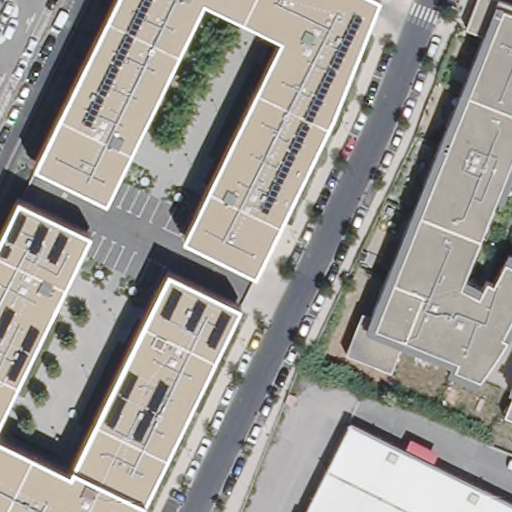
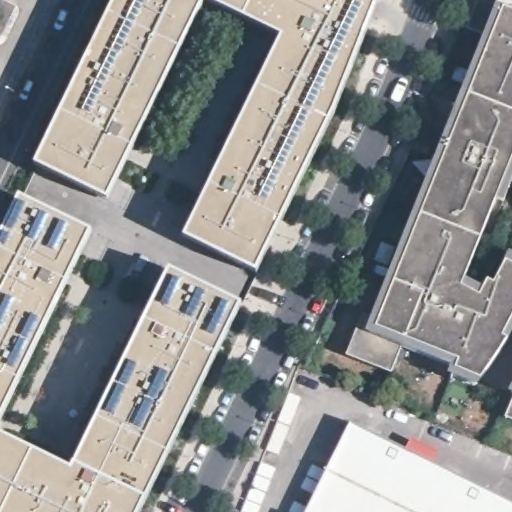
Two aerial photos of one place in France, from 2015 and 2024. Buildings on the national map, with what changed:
unchanged [(114,0),(379,0),(258,269),(182,238),(279,39),(244,18),(205,1),(110,192),(37,160),(114,0)]
unchanged [(373,314),(486,33),(470,25),(480,0),(504,0),(512,3),(512,172),(464,283),(484,295),(489,280),(497,283),(509,253),(512,255),(512,333),(507,342),(480,384),(456,373),(459,362),(405,338),(394,372),(346,355),(362,311),(373,314)]
unchanged [(19,196),(91,232),(0,419),(0,235),(19,196)]
unchanged [(137,512),(0,512),(0,436),(70,470),(73,464),(168,269),(240,304),(143,500),(137,512)]
unchanged [(512,399),(512,418),(506,416),(512,399)]
unchanged [(512,512),(306,512),(350,422),(512,501),(512,512)]

